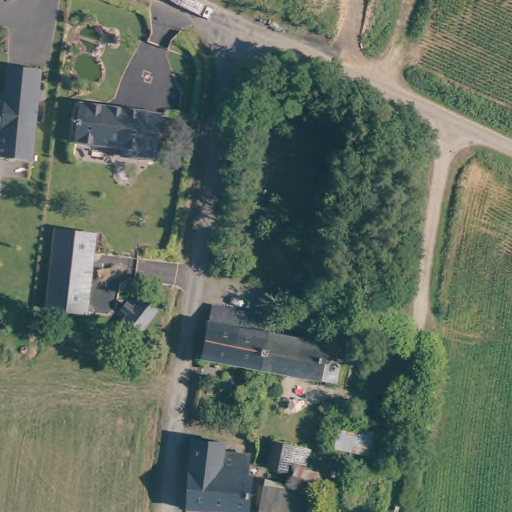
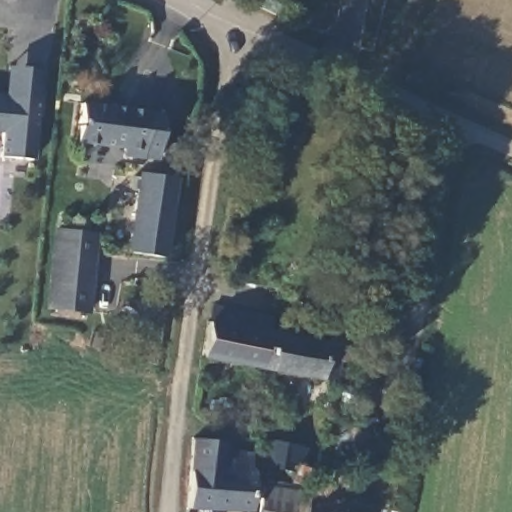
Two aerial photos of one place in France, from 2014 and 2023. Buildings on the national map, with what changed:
unchanged [(30,61),(27,90),(6,89),(6,95),(0,95),(0,59),(30,61)]
unchanged [(22,151),(0,149),(0,95),(6,95),(6,89),(27,90),(22,151)]
unchanged [(150,110),(146,156),(125,155),(126,145),(79,143),(84,104),(150,110)]
new [(162,259),(125,252),(139,171),(177,178),(162,259)]
unchanged [(56,234),(97,238),(89,315),(49,311),(56,234)]
unchanged [(124,311),(128,306),(135,311),(142,301),(159,313),(138,340),(122,327),(130,316),(124,311)]
unchanged [(276,331),(224,320),(226,301),(282,314),(279,331),(276,331)]
unchanged [(217,318),(224,320),(276,331),(269,369),(212,356),(217,318)]
unchanged [(269,369),(276,331),(279,331),(305,337),(297,376),(269,369)]
unchanged [(332,343),(335,343),(332,360),(345,363),(341,385),(297,376),(305,337),(332,343)]
unchanged [(278,438),(315,448),(312,465),(297,460),(295,471),(273,466),(278,438)]
unchanged [(217,455),(241,460),(239,477),(248,480),(243,512),(224,512),(185,506),(193,443),(218,448),(217,455)]
unchanged [(306,495),(304,512),(258,512),(263,486),(306,495)]

